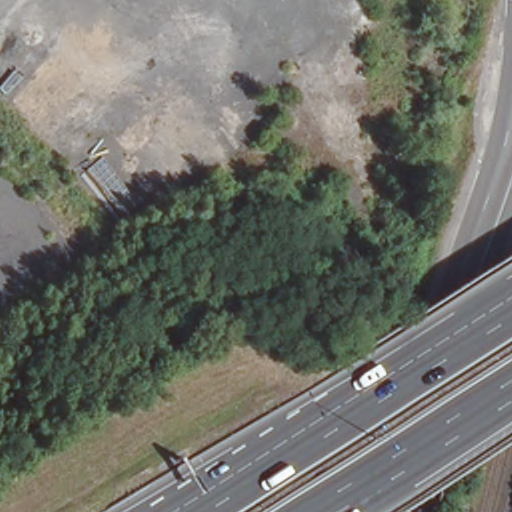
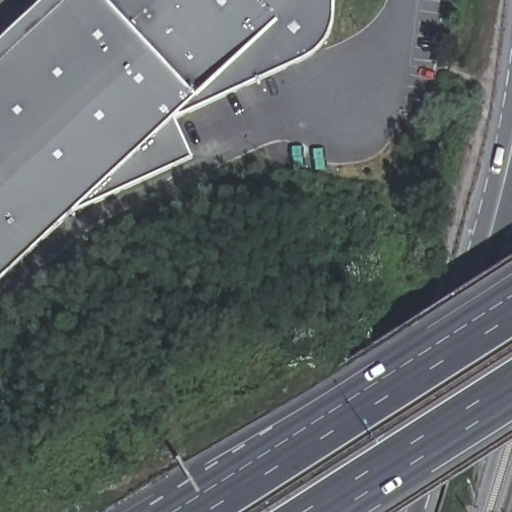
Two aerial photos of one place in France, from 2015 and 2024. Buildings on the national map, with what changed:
new [(328,35),(323,44),(311,56),(175,119),(190,156),(75,208),(0,278),(0,40),(43,0),(333,0),(332,16),(328,35)]

